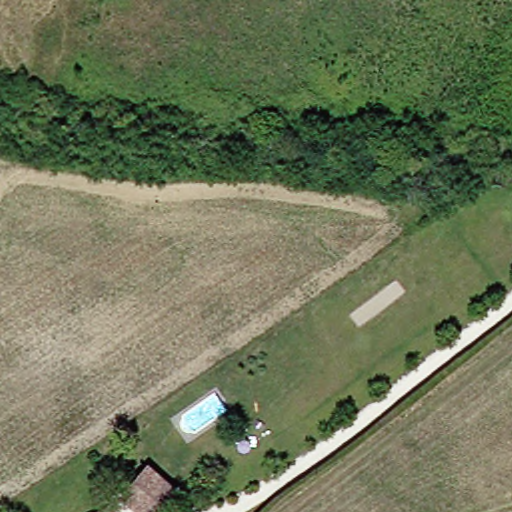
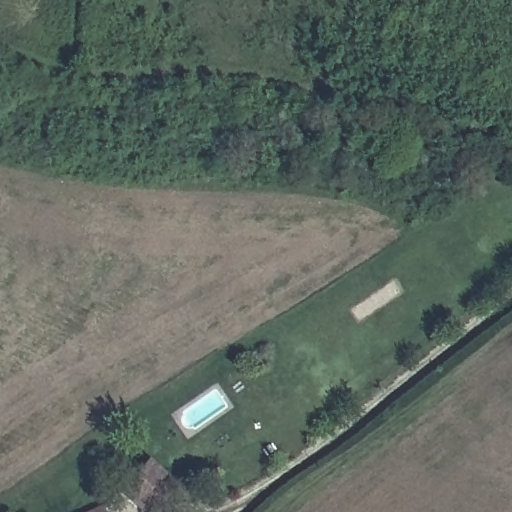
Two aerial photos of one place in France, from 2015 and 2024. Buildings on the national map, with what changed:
unchanged [(181,479),(165,512),(158,512),(132,501),(146,474),(150,465),(181,479)]
unchanged [(103,512),(78,512),(100,504),(103,512)]

